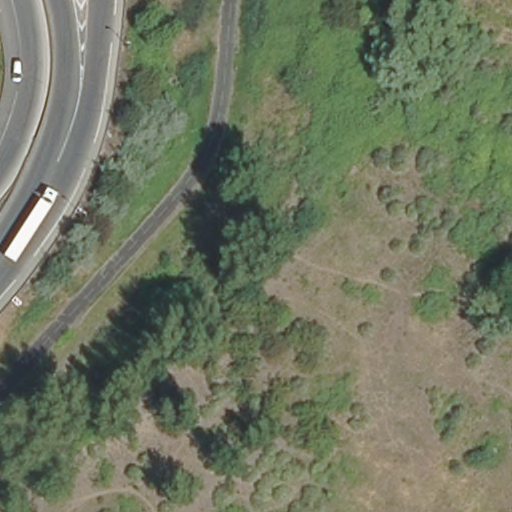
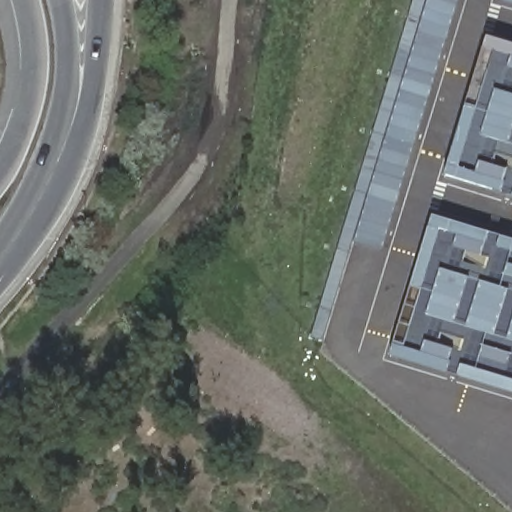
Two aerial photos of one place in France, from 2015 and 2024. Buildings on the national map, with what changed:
new [(504,0),(512,0),(512,2),(504,0)]
new [(444,177),(488,37),(512,45),(512,198),(444,177)]
new [(389,356),(432,217),(512,241),(512,393),(389,356)]

